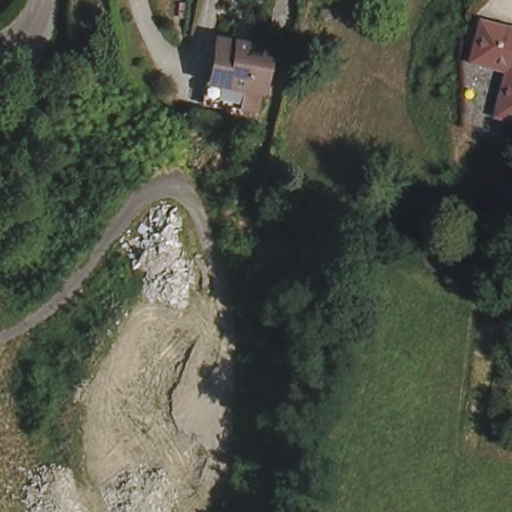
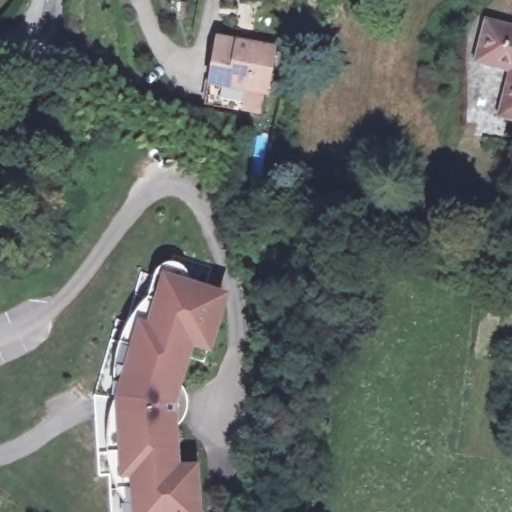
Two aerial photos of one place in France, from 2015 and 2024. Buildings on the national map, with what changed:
unchanged [(512,29),(512,130),(488,124),(500,75),(474,68),(485,22),(512,29)]
unchanged [(211,31),(279,44),(271,100),(201,88),(211,31)]
new [(203,512),(125,512),(125,506),(120,497),(115,484),(111,473),(109,461),(107,449),(107,438),(107,427),(110,416),(115,400),(114,384),(115,367),(117,352),(122,338),(129,324),(137,311),(149,298),(157,270),(161,266),(167,264),(175,264),(181,266),(185,269),(187,274),(190,282),(230,293),(212,355),(194,349),(182,388),(186,393),(187,400),(187,410),(184,418),(177,425),(181,465),(200,464),(203,512)]
demolished [(184,338),(162,402),(180,447),(231,462),(222,505),(181,495),(167,469),(134,481),(110,420),(122,411),(145,329),(184,338)]

